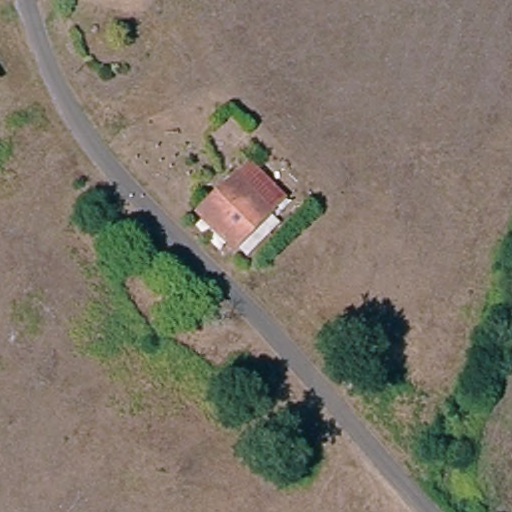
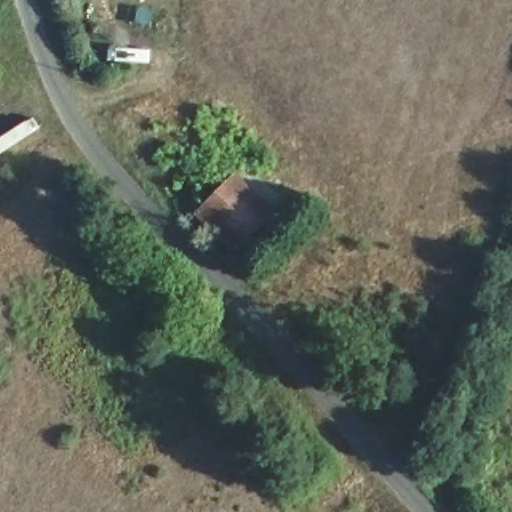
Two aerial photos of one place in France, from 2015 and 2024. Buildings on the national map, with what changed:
unchanged [(4,71),(0,73),(0,65),(4,71)]
unchanged [(282,211),(246,245),(209,209),(244,174),(282,211)]

